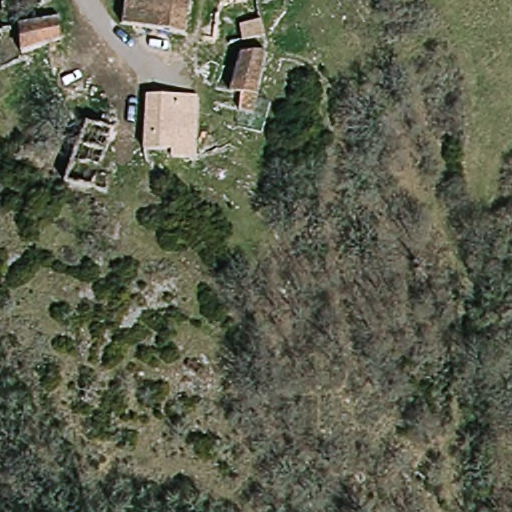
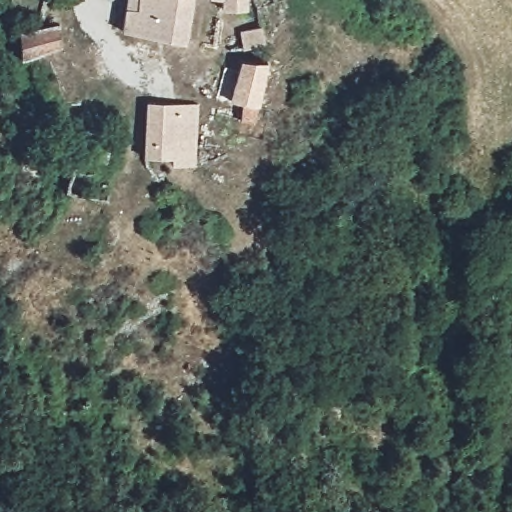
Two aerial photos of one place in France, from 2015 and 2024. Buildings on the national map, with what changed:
unchanged [(181,7),(203,10),(203,39),(125,31),(125,11),(125,0),(181,0),(181,7)]
unchanged [(213,7),(213,0),(247,0),(247,11),(213,7)]
unchanged [(62,27),(61,52),(33,52),(25,52),(25,27),(62,27)]
unchanged [(250,141),(236,138),(238,122),(239,114),(236,113),(231,111),(234,60),(263,56),(262,62),(253,119),(253,122),(250,141)]
unchanged [(143,153),(146,109),(148,101),(172,104),(168,156),(143,153)]
unchanged [(195,117),(191,159),(168,156),(172,104),(196,107),(195,117)]

